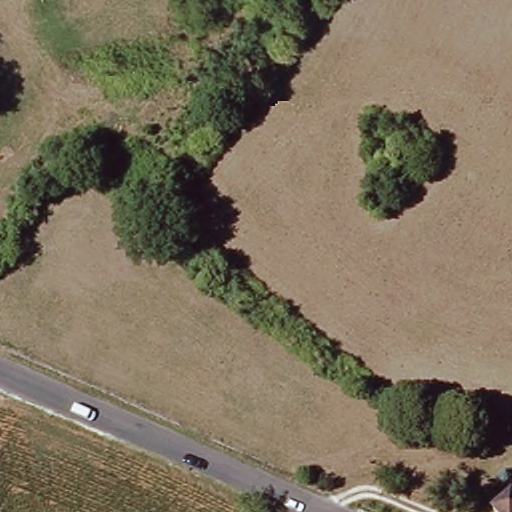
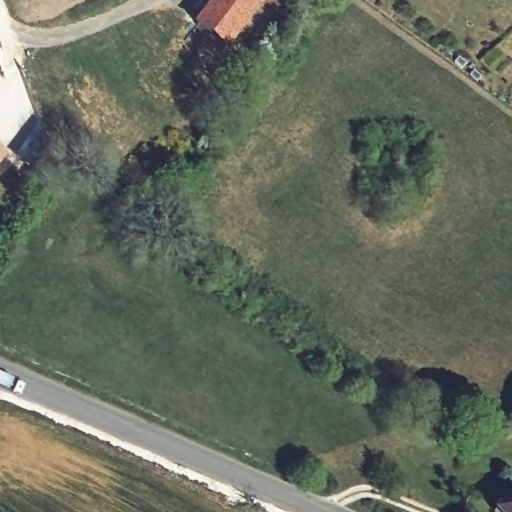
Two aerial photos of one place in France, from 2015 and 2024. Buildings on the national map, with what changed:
new [(267,0),(227,53),(192,25),(211,0),(267,0)]
new [(8,158),(0,165),(0,147),(8,158)]
unchanged [(512,504),(512,512),(491,512),(505,497),(512,504)]

